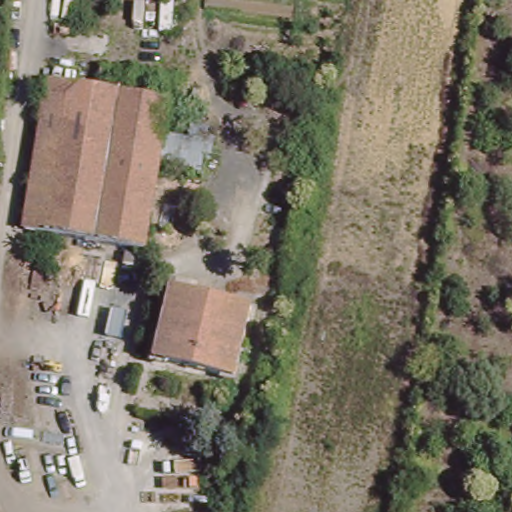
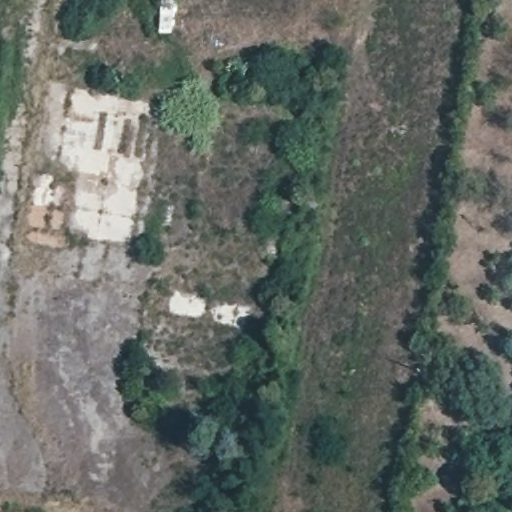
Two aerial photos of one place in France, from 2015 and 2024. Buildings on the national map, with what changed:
demolished [(140,249),(18,228),(43,81),(165,101),(140,249)]
demolished [(236,378),(153,359),(170,286),(253,306),(236,378)]
unchanged [(477,498),(466,496),(468,486),(480,489),(477,498)]

